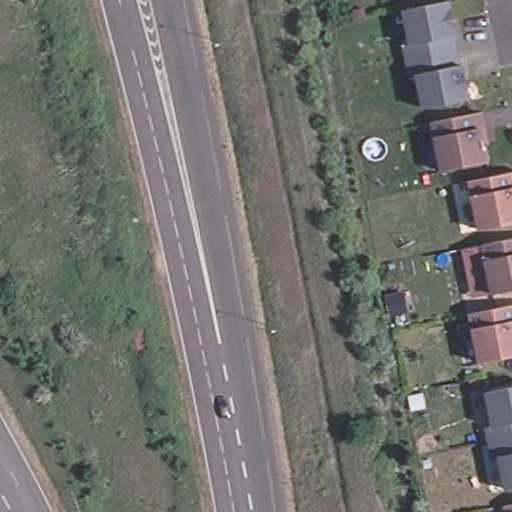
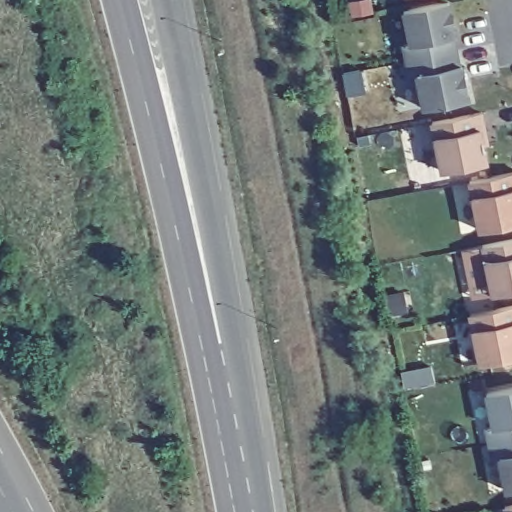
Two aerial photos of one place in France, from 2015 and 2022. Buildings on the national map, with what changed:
unchanged [(448,2),(455,36),(452,36),(455,51),(445,53),(410,60),(407,45),(410,44),(403,11),(448,2)]
unchanged [(459,66),(461,66),(468,100),(423,109),(417,76),(414,76),(410,60),(445,53),(455,51),(459,66)]
unchanged [(480,113),(484,129),(480,130),(486,163),(441,172),(432,123),(480,113)]
unchanged [(512,173),(512,224),(479,231),(469,182),(512,173)]
unchanged [(492,295),(482,246),(512,240),(512,291),(492,295)]
unchanged [(512,306),(512,357),(480,364),(470,315),(512,306)]
unchanged [(486,428),(492,427),(486,393),(512,388),(512,439),(489,444),(486,428)]
unchanged [(512,439),(512,491),(506,492),(499,458),(492,460),(489,444),(512,439)]
unchanged [(504,507),(510,506),(512,506),(512,512),(505,512),(504,507)]

